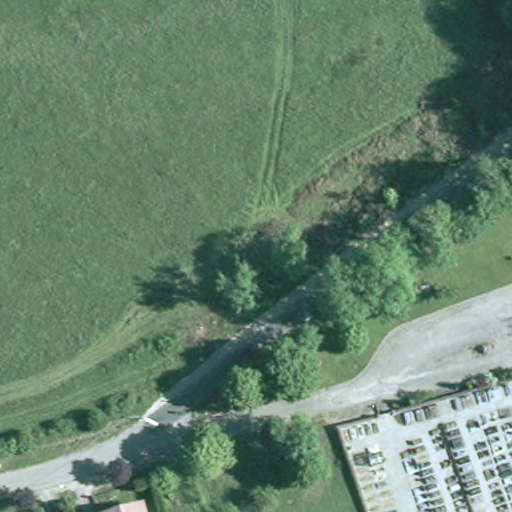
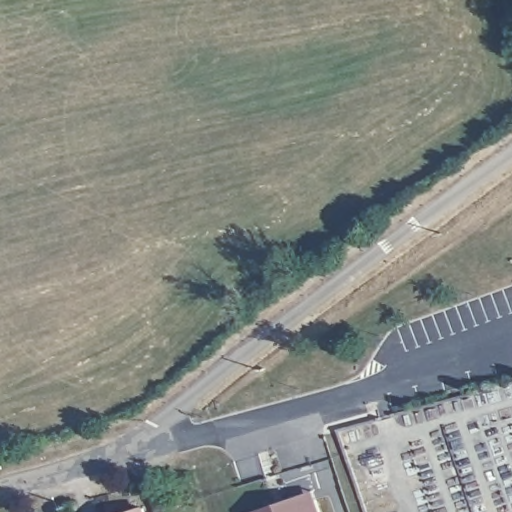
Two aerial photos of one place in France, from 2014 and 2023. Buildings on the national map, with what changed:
new [(322,512),(243,512),(315,488),(322,512)]
unchanged [(138,507),(140,512),(123,512),(138,507)]

